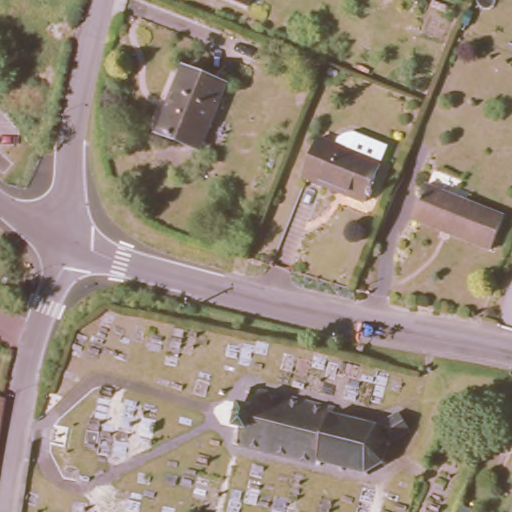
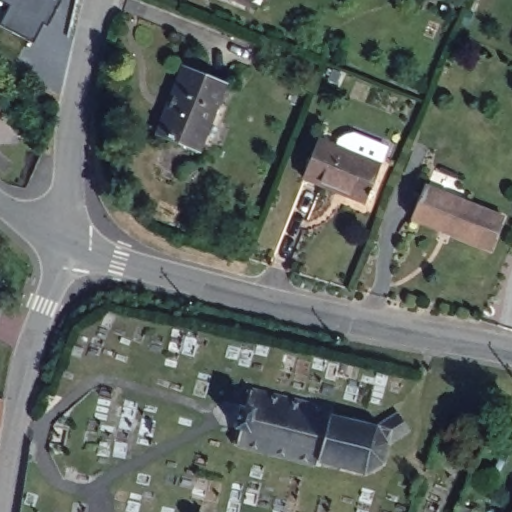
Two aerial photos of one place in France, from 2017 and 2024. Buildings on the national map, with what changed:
new [(48,26),(44,24),(33,44),(0,24),(0,23),(10,6),(0,1),(0,0),(58,0),(61,1),(48,26)]
unchanged [(155,133),(177,68),(225,83),(203,149),(155,133)]
unchanged [(373,160),(360,195),(298,170),(312,136),(373,160)]
unchanged [(484,251),(401,215),(422,176),(499,212),(484,251)]
unchanged [(253,390),(383,422),(401,412),(413,429),(397,439),(389,468),(367,477),(238,444),(253,390)]
unchanged [(512,487),(512,512),(505,512),(512,487)]

